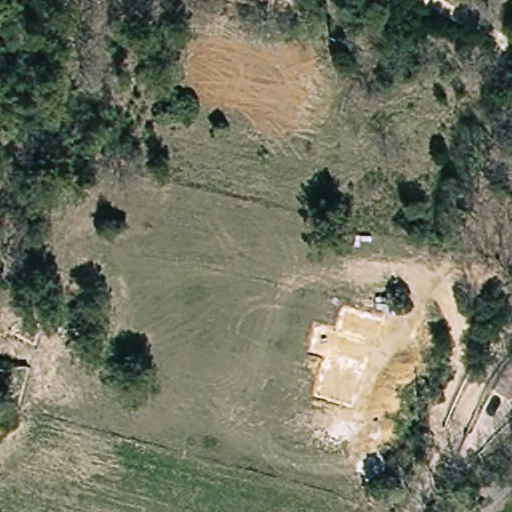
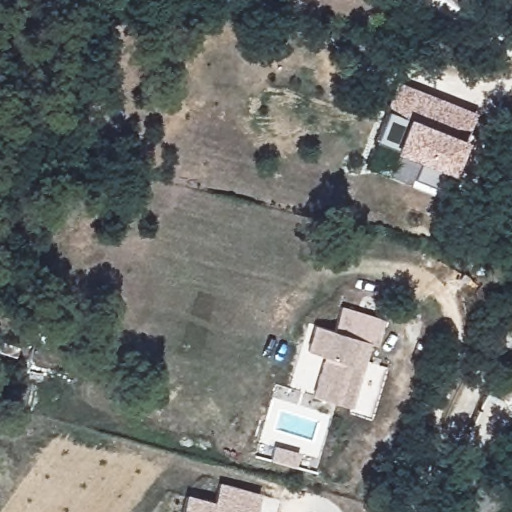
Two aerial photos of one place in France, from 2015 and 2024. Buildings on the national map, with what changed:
new [(401,81),(447,97),(437,125),(391,109),(401,81)]
new [(391,109),(437,125),(447,97),(478,108),(451,187),(420,176),(427,156),(381,140),(391,109)]
new [(306,327),(326,332),(332,307),(375,319),(368,344),(361,342),(344,407),(306,397),(318,357),(300,352),(306,327)]
new [(232,512),(182,512),(187,495),(213,502),(219,483),(260,495),(255,512),(244,512),(233,510),(232,512)]

